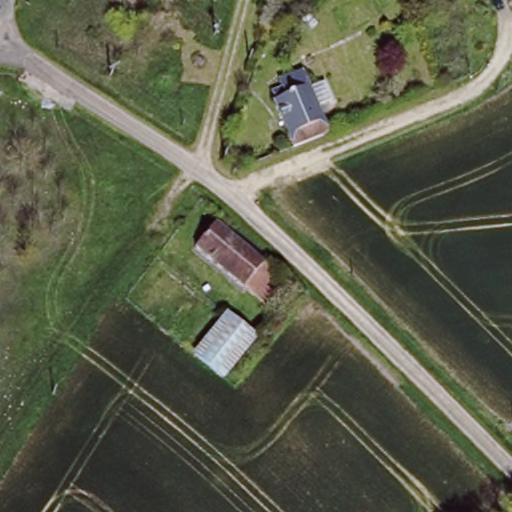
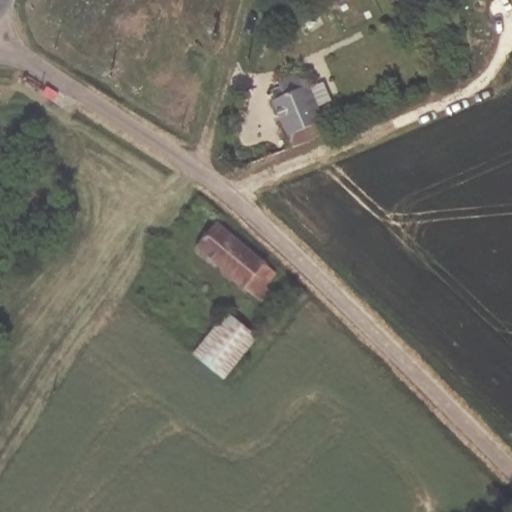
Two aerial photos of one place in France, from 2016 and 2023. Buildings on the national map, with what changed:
unchanged [(412,0),(410,1),(410,0),(412,0)]
unchanged [(277,93),(274,85),(280,82),(277,76),(300,66),(307,86),(320,81),(328,102),(327,103),(315,106),(325,135),(289,150),(270,95),(277,93)]
unchanged [(200,229),(207,235),(220,223),(273,271),(265,282),(275,292),(262,308),(198,251),(201,248),(190,240),(200,229)]
unchanged [(226,319),(252,341),(221,379),(196,355),(226,319)]

